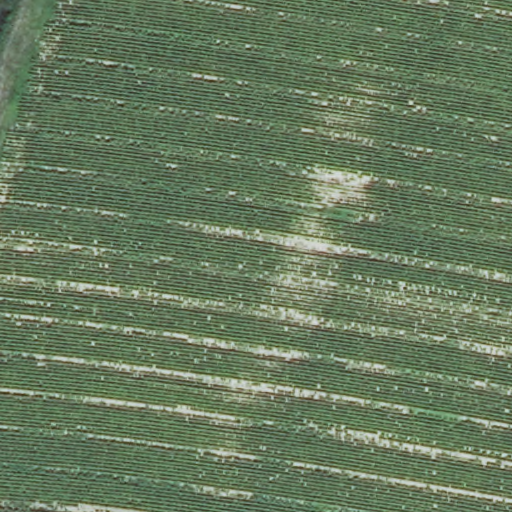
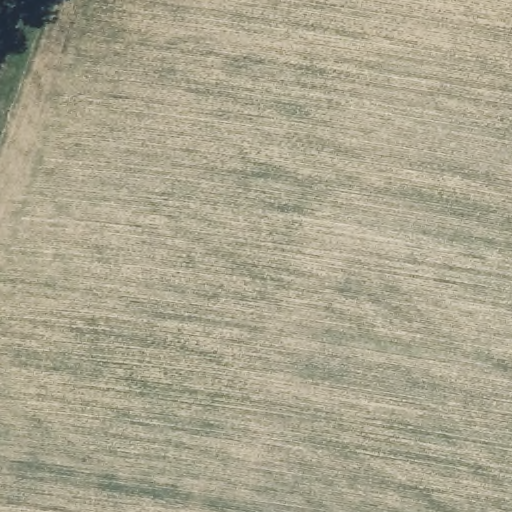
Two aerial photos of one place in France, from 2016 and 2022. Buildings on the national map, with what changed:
[]

